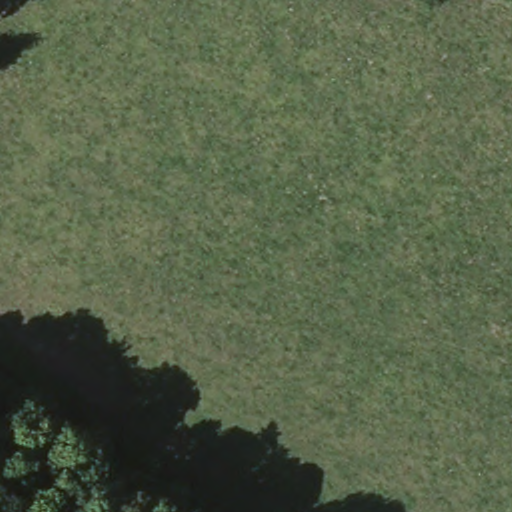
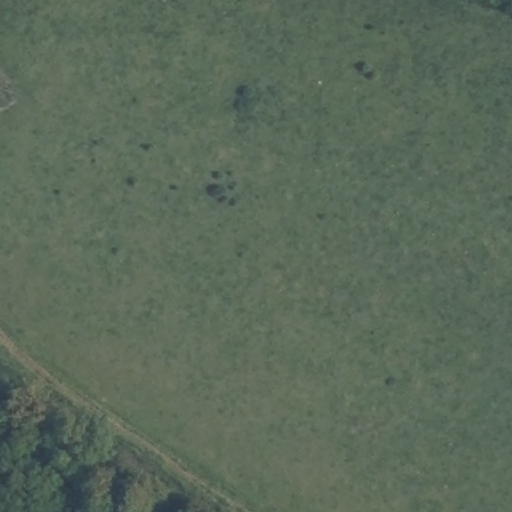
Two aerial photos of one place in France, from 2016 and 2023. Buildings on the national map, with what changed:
[]

